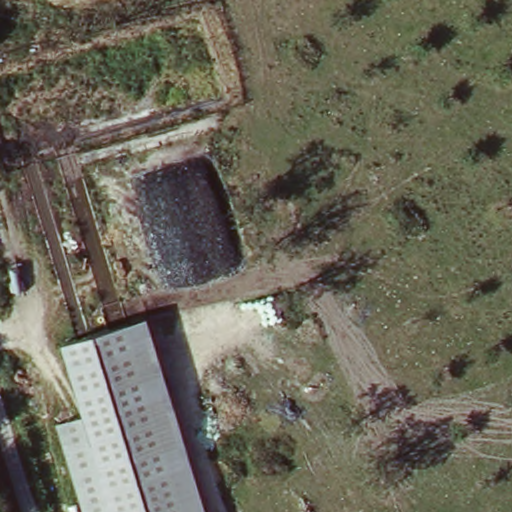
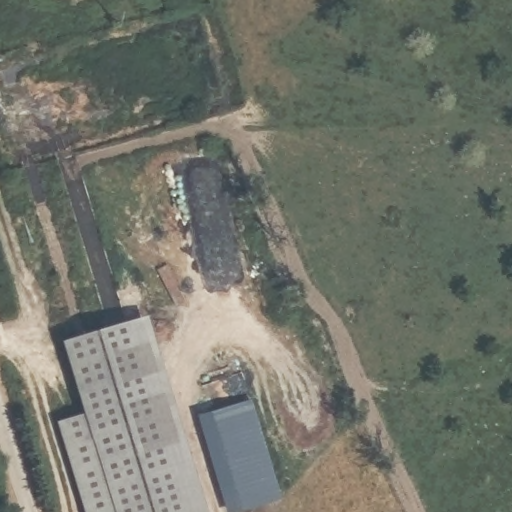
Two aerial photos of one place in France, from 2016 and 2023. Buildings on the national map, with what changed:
unchanged [(62,343),(145,317),(207,512),(84,512),(55,422),(83,413),(62,343)]
new [(279,500),(233,512),(225,512),(197,418),(250,402),(279,500)]

